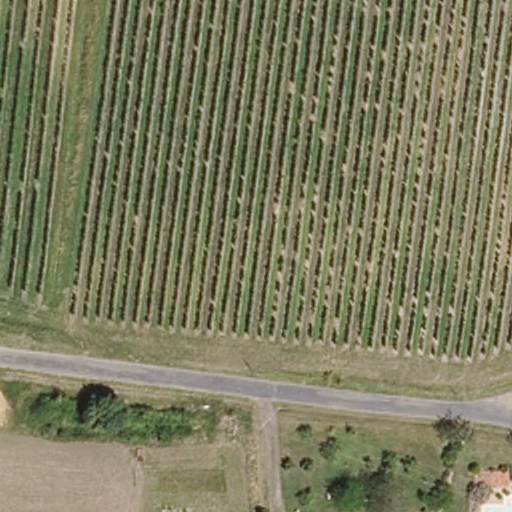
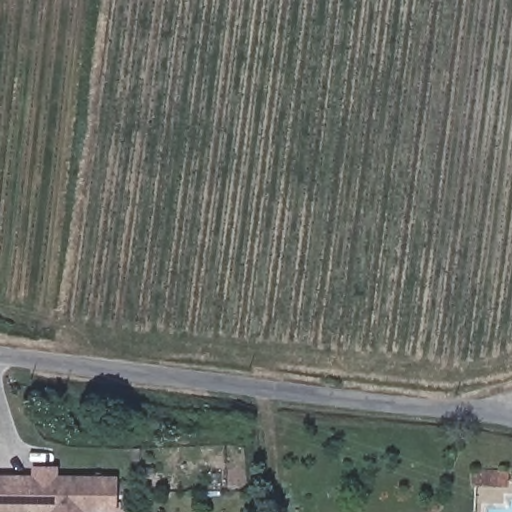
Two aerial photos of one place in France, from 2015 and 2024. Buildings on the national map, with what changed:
new [(0,475),(31,474),(31,466),(58,466),(58,476),(116,476),(116,512),(0,512),(0,475)]
unchanged [(485,487),(474,487),(474,478),(474,473),(485,473),(505,472),(505,478),(505,487),(485,487)]

